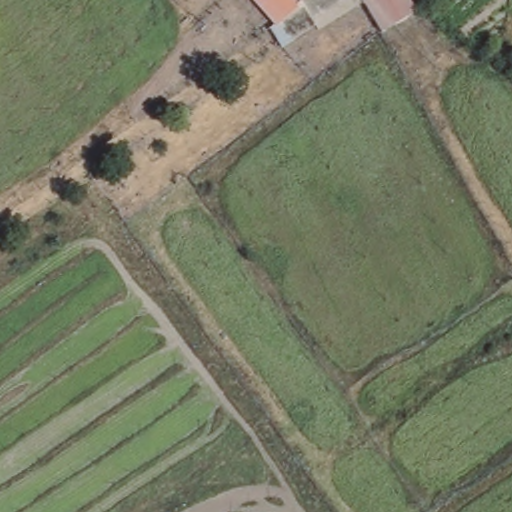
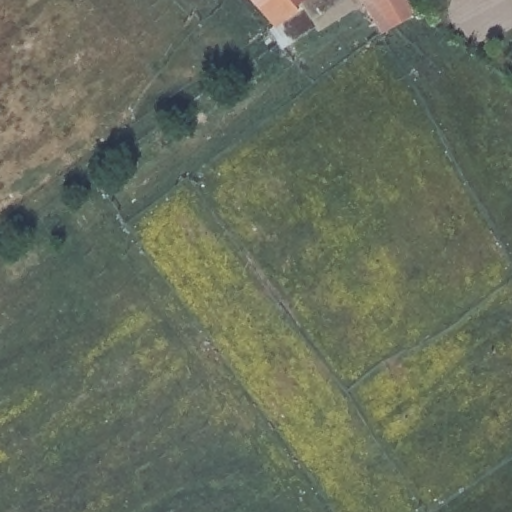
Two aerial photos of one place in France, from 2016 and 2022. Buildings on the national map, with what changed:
unchanged [(271,30),(276,25),(253,0),(411,0),(417,11),(384,32),(364,1),(320,31),(316,25),(283,50),(271,30)]

